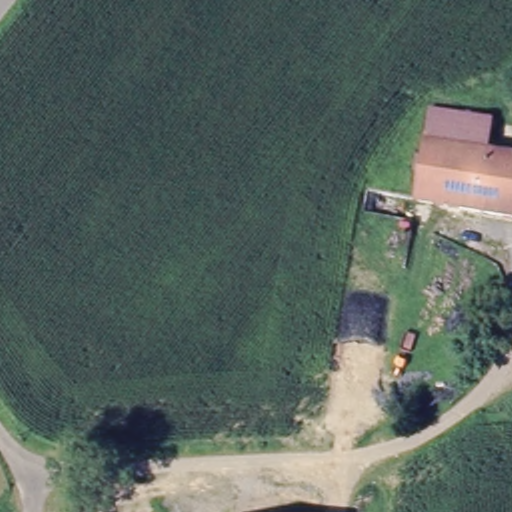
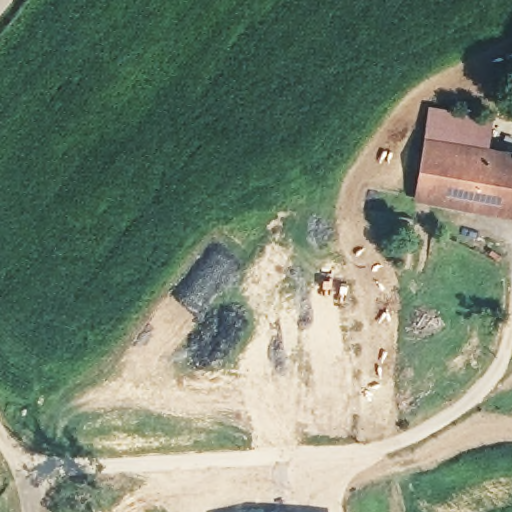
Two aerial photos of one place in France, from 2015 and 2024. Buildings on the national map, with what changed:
unchanged [(494,125),(490,154),(428,142),(433,115),(494,125)]
unchanged [(428,142),(490,154),(512,159),(512,221),(419,204),(428,142)]

